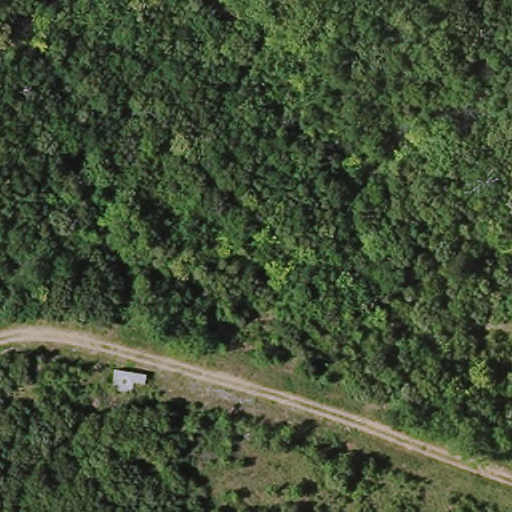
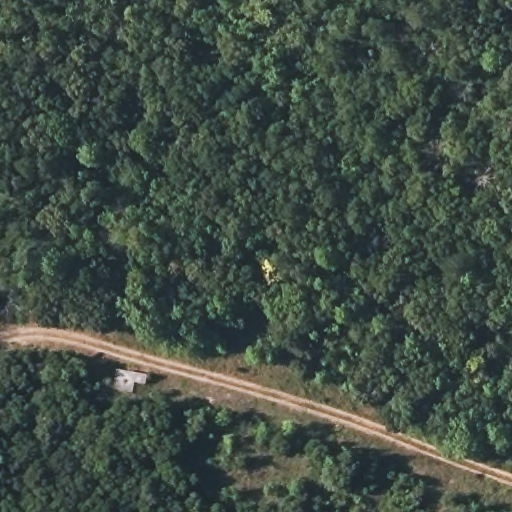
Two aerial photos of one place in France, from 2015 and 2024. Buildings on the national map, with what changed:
unchanged [(151,387),(139,386),(138,396),(114,391),(116,372),(151,376),(151,387)]

